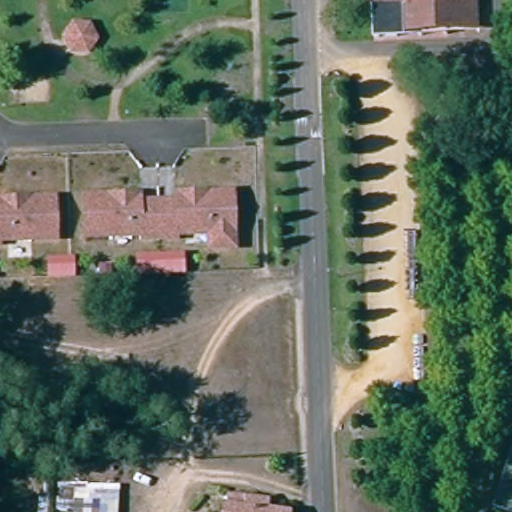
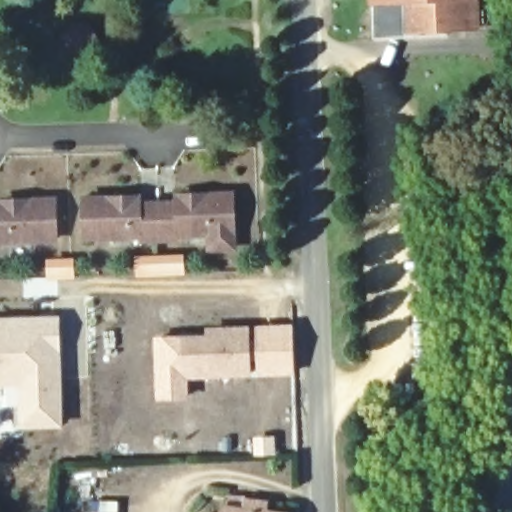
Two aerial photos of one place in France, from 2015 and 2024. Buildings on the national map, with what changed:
unchanged [(370,41),(368,0),(473,0),(475,33),(404,35),(393,35),(393,41),(370,41)]
unchanged [(101,40),(94,54),(79,54),(71,41),(78,27),(93,26),(101,40)]
unchanged [(214,254),(214,239),(180,239),(180,244),(146,245),(146,240),(98,242),(89,242),(89,203),(89,202),(113,202),(143,201),(143,208),(182,207),(182,200),(213,199),(237,198),(238,253),(214,254)]
unchanged [(5,205),(35,204),(59,203),(60,243),(3,244),(3,249),(0,249),(0,212),(5,212),(5,205)]
new [(134,278),(134,256),(185,254),(186,274),(134,278)]
new [(64,427),(19,429),(18,385),(0,385),(0,317),(60,316),(64,427)]
new [(252,377),(182,380),(180,334),(206,334),(206,326),(251,325),(252,377)]
new [(259,376),(257,326),(293,325),(295,375),(259,376)]
new [(182,380),(188,380),(189,400),(156,401),(154,337),(180,334),(182,380)]
demolished [(76,483),(123,485),(122,512),(75,512),(76,483)]
new [(91,511),(84,511),(84,499),(88,499),(89,485),(120,487),(117,512),(90,512),(91,511)]
new [(290,512),(221,512),(223,504),(225,504),(227,494),(243,496),(270,500),(268,509),(291,512),(290,512)]
demolished [(233,511),(246,512),(232,512),(233,511)]

